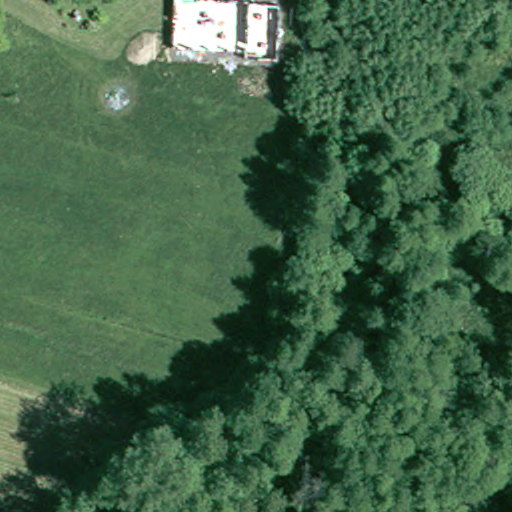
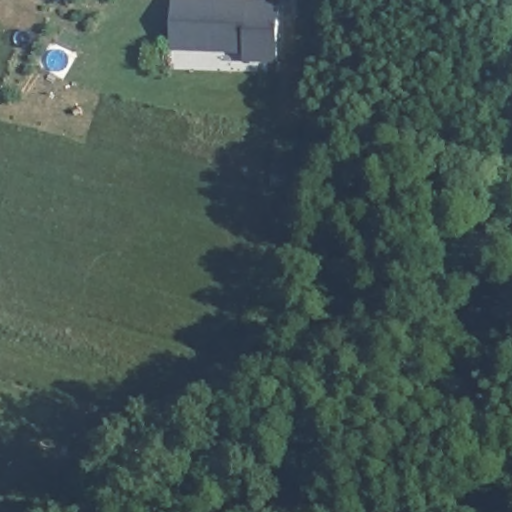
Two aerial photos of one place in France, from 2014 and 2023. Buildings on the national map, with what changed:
unchanged [(277,62),(243,61),(244,52),(170,49),(172,0),(216,0),(280,5),(277,62)]

